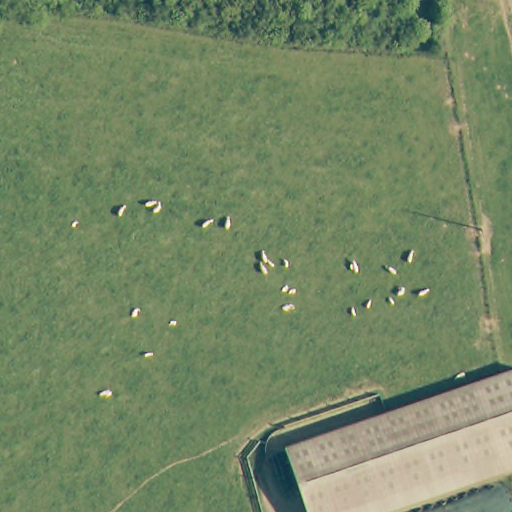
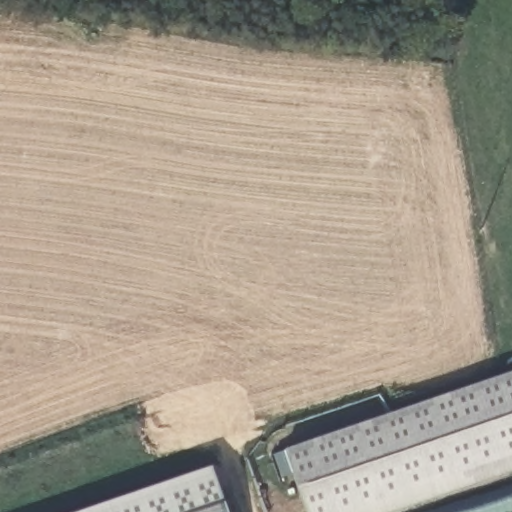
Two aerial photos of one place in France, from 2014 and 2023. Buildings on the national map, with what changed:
unchanged [(512,372),(512,453),(342,512),(303,512),(282,451),(512,372)]
new [(81,512),(214,467),(228,512),(81,512)]

